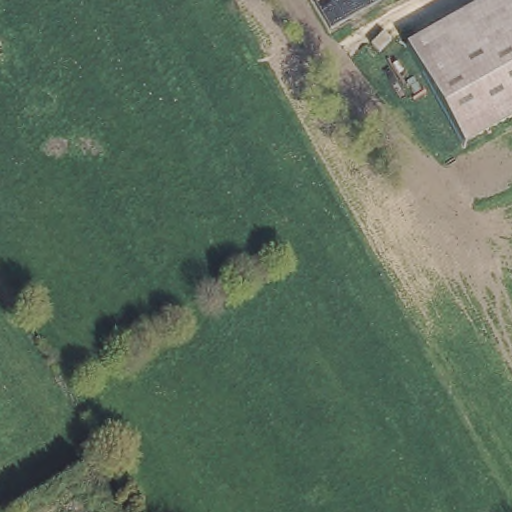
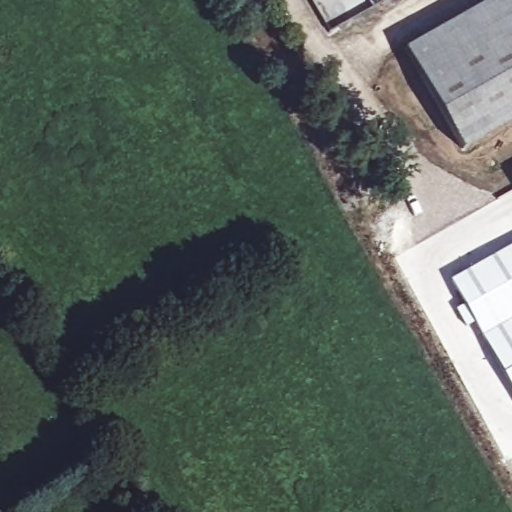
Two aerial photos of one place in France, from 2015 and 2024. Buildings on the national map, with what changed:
unchanged [(465,150),(404,48),(489,0),(512,0),(512,124),(465,150)]
new [(474,323),(465,328),(455,310),(464,305),(449,280),(512,246),(512,391),(474,323)]

